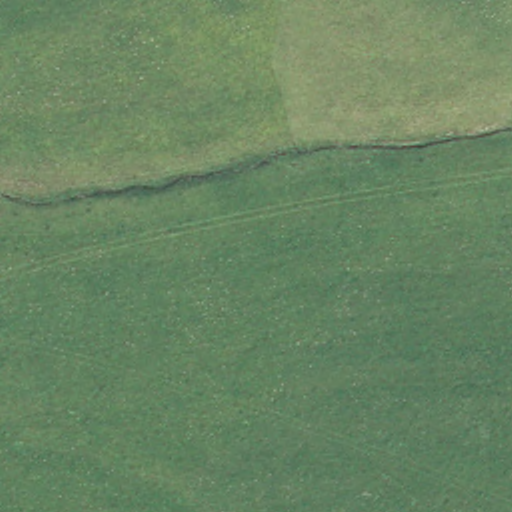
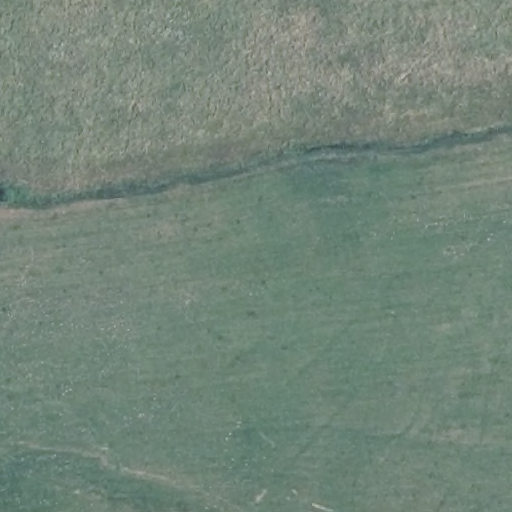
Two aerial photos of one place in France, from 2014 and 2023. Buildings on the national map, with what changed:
[]

